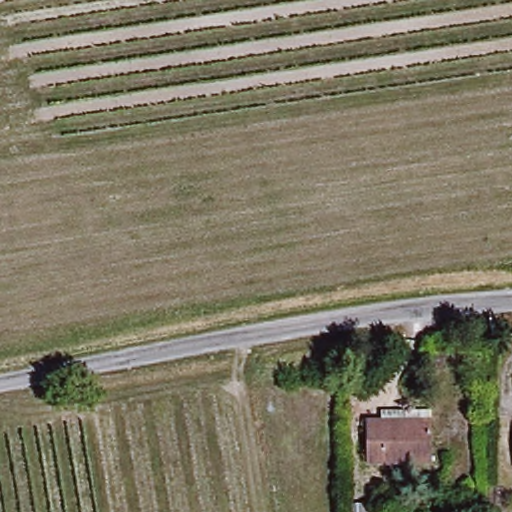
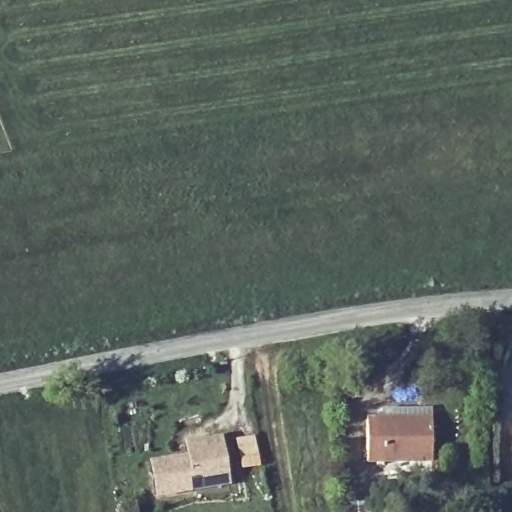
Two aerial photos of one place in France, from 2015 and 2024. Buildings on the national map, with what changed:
unchanged [(365,463),(363,417),(423,414),(425,461),(365,463)]
new [(149,460),(186,454),(185,442),(222,435),(230,486),(155,498),(149,460)]
unchanged [(363,511),(364,512),(344,512),(343,511),(363,511)]

